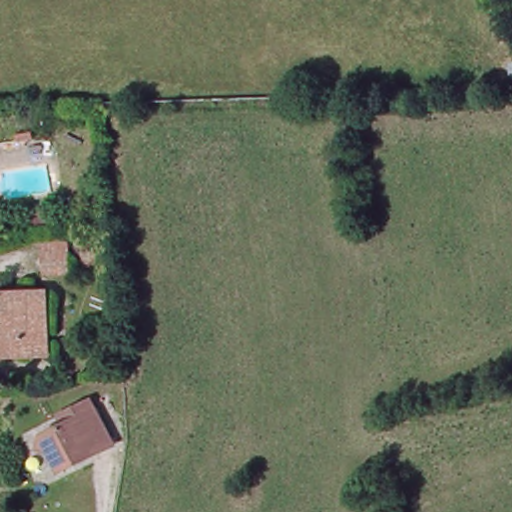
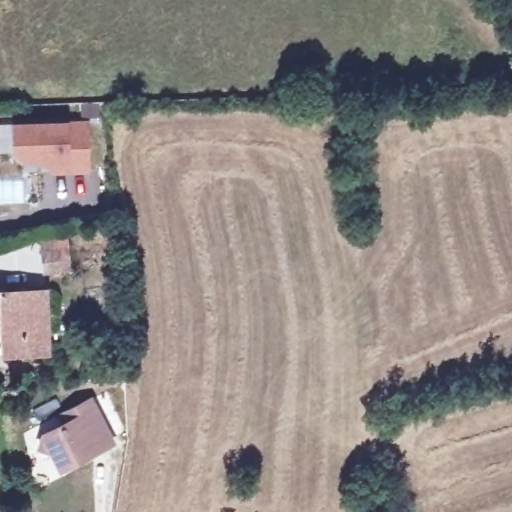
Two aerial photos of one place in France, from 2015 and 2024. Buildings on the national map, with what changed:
new [(85,120),(86,168),(50,169),(50,156),(20,157),(12,150),(11,122),(85,120)]
demolished [(36,228),(33,207),(50,205),(52,224),(36,228)]
unchanged [(51,267),(43,268),(41,248),(50,247),(67,245),(70,265),(51,267)]
unchanged [(13,358),(11,319),(0,319),(0,294),(53,292),(58,356),(13,358)]
unchanged [(57,448),(45,444),(48,431),(87,409),(83,401),(95,394),(114,431),(95,442),(97,448),(66,464),(57,448)]

